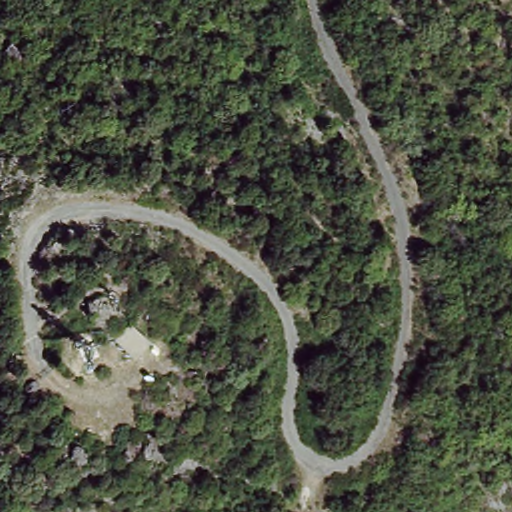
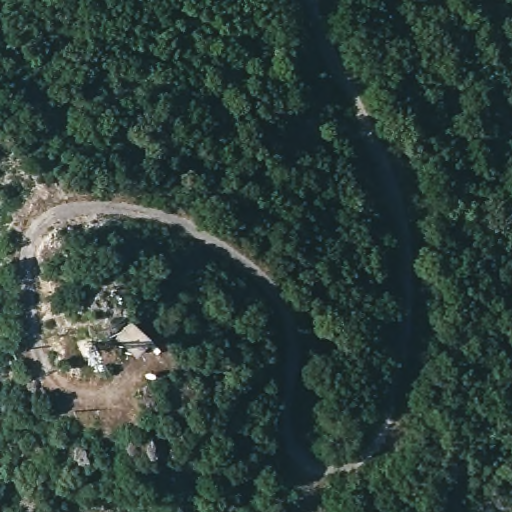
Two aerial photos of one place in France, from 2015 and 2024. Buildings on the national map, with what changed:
unchanged [(158,341),(140,367),(111,343),(128,318),(158,341)]

